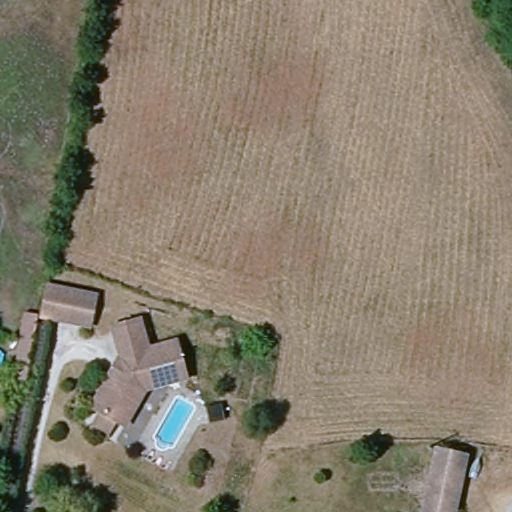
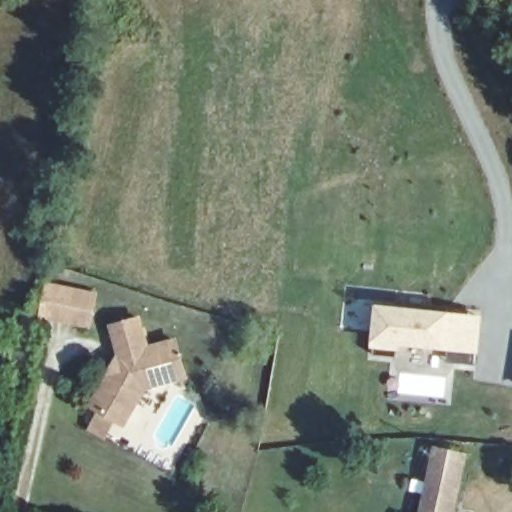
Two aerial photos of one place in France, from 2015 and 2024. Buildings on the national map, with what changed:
unchanged [(95,293),(89,322),(40,313),(45,282),(95,293)]
new [(445,348),(402,345),(401,351),(372,347),(377,305),(449,312),(483,315),(479,351),(445,348)]
unchanged [(94,408),(110,374),(116,377),(121,369),(118,361),(109,330),(136,320),(145,348),(175,338),(186,377),(142,391),(124,423),(94,408)]
unchanged [(436,447),(468,453),(455,512),(421,512),(436,447)]

